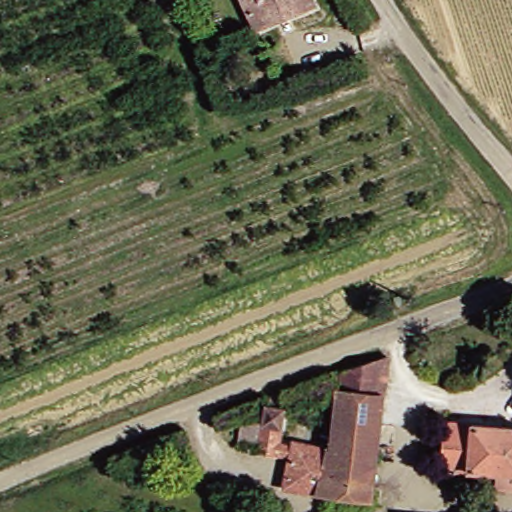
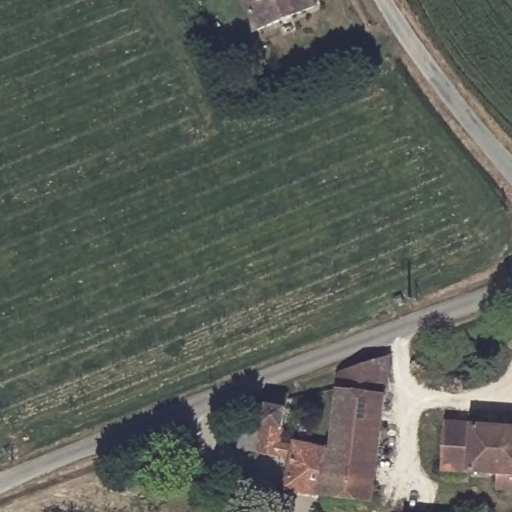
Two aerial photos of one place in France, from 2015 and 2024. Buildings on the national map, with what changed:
unchanged [(260,28),(248,0),(319,0),(320,3),(260,28)]
unchanged [(200,82),(187,55),(202,48),(214,76),(200,82)]
unchanged [(340,449),(344,368),(392,351),(386,459),(341,457),(338,497),(298,495),(300,466),(263,464),(266,399),(292,389),(290,451),(301,452),(301,447),(340,449)]
unchanged [(448,472),(452,423),(512,428),(512,477),(448,472)]
unchanged [(383,499),(338,497),(341,457),(386,459),(383,499)]

